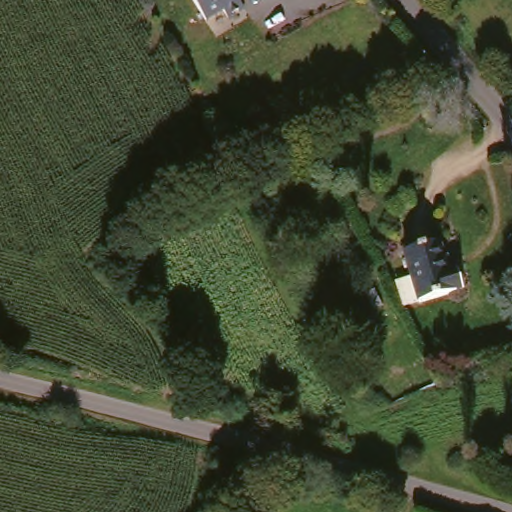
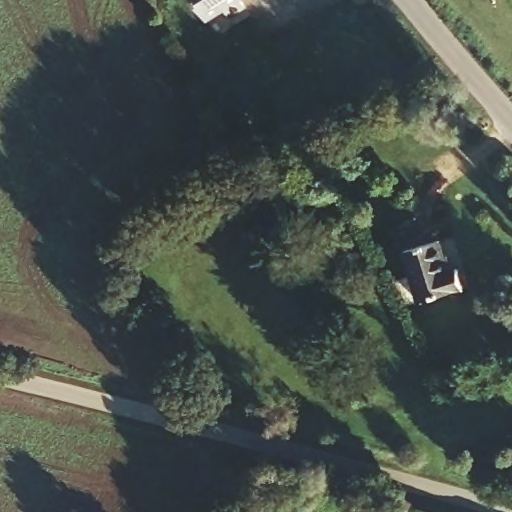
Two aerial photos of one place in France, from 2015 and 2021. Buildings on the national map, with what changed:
unchanged [(249,15),(234,26),(227,18),(210,31),(187,1),(188,0),(243,0),(242,6),(249,15)]
unchanged [(445,246),(451,270),(461,267),(469,298),(420,311),(405,258),(445,246)]

